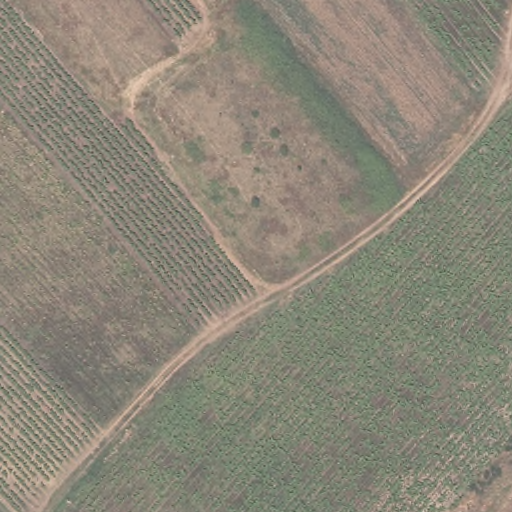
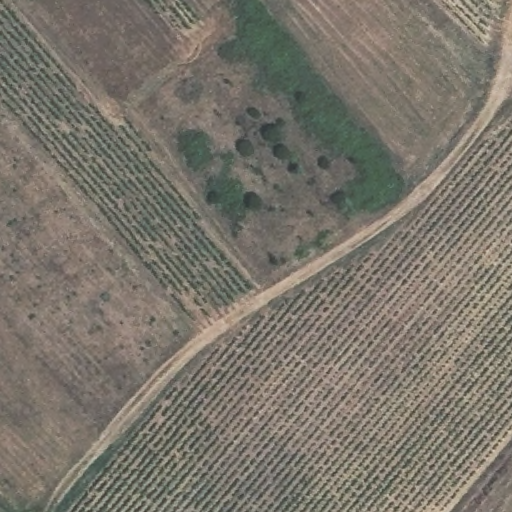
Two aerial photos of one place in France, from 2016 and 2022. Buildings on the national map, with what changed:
[]

